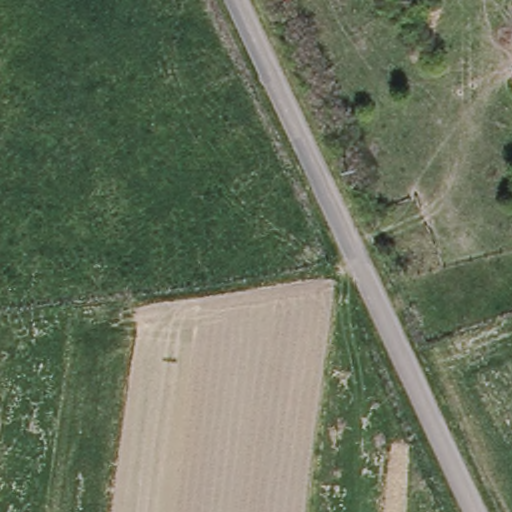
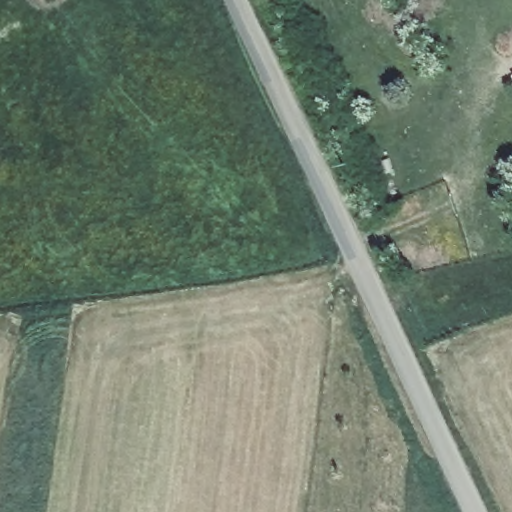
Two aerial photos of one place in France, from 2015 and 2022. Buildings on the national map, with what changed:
unchanged [(512,70),(512,89),(505,73),(512,70)]

